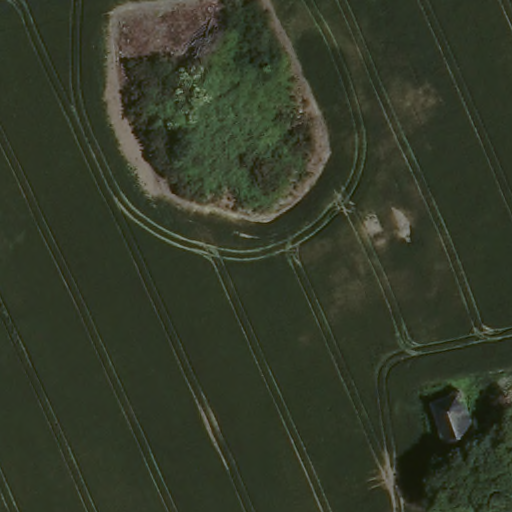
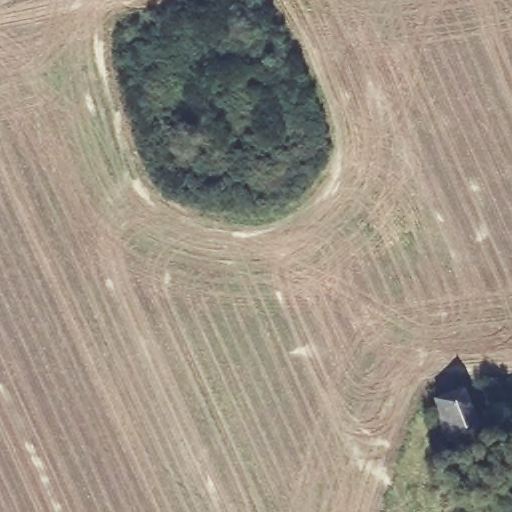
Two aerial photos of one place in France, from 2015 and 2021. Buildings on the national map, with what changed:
unchanged [(450,434),(446,425),(434,399),(462,388),(475,419),(475,427),(473,435),(470,438),(461,441),(450,434)]

